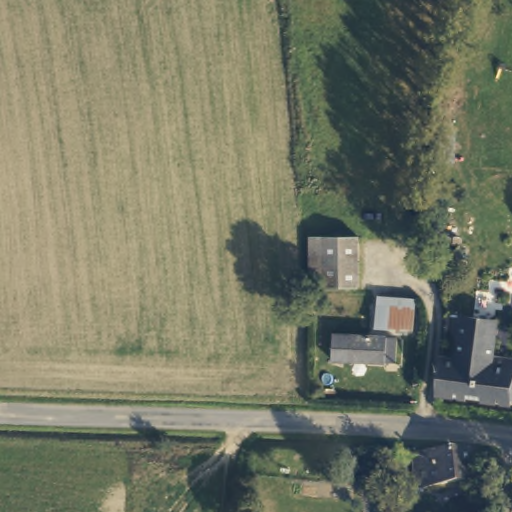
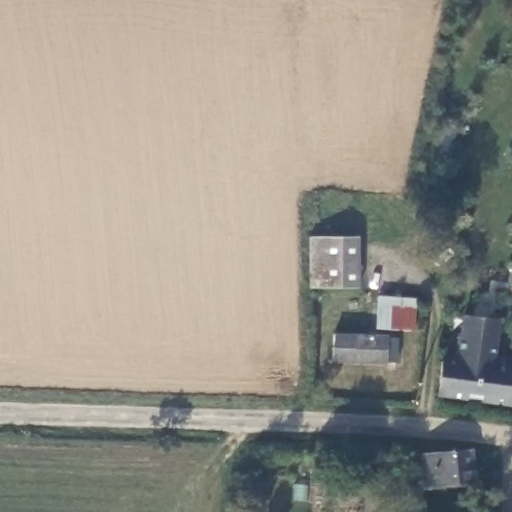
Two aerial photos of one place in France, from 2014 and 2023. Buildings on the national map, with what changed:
unchanged [(323,237),(357,237),(359,290),(324,290),(309,290),(309,238),(323,237)]
unchanged [(419,298),(416,331),(381,327),(386,294),(419,298)]
unchanged [(509,397),(509,405),(437,393),(442,358),(457,359),(462,316),(496,321),(493,355),(512,357),(512,397),(509,397)]
unchanged [(399,337),(399,362),(337,361),(338,336),(399,337)]
unchanged [(477,480),(418,489),(414,453),(473,449),(477,480)]

